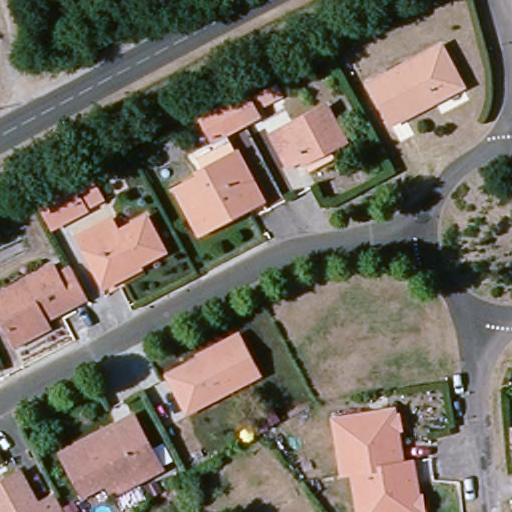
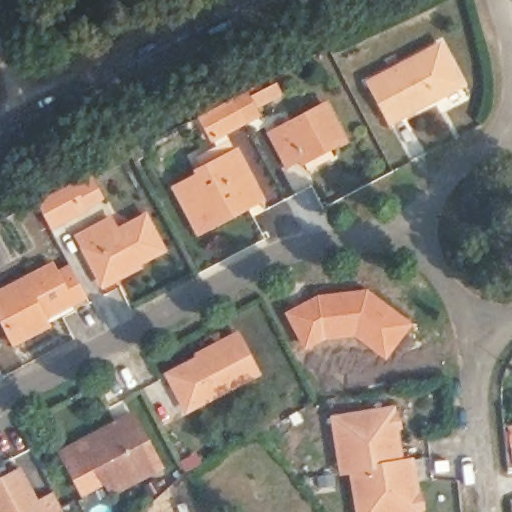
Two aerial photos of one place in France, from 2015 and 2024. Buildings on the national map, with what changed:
unchanged [(456,91),(391,125),(366,85),(433,52),(456,91)]
unchanged [(244,89),(278,72),(289,94),(254,110),(244,89)]
unchanged [(194,120),(225,104),(241,96),(254,120),(238,129),(207,145),(194,120)]
unchanged [(309,174),(303,165),(298,157),(283,166),(265,135),(319,106),(339,144),(329,150),(335,160),(309,174)]
unchanged [(195,241),(171,199),(198,182),(196,177),(190,167),(224,148),(230,159),(257,208),(239,217),(207,235),(195,241)]
unchanged [(71,185),(97,173),(110,202),(83,215),(71,185)]
unchanged [(31,207),(55,195),(66,189),(79,213),(68,219),(44,231),(31,207)]
unchanged [(84,271),(68,240),(84,231),(97,224),(106,237),(137,220),(158,257),(112,281),(94,291),(84,271)]
unchanged [(13,347),(0,322),(0,289),(43,267),(48,276),(66,265),(85,300),(65,310),(36,325),(40,333),(13,347)]
new [(318,295),(366,288),(414,322),(385,361),(353,337),(325,341),(304,351),(284,312),(318,295)]
unchanged [(173,375),(235,343),(244,338),(263,373),(254,378),(192,411),(173,375)]
unchanged [(104,476),(81,490),(60,450),(126,415),(153,468),(136,477),(111,490),(104,476)]
unchanged [(349,476),(339,478),(329,425),(389,415),(399,467),(349,476)]
unchanged [(417,512),(355,512),(349,476),(399,467),(408,465),(417,512)]
unchanged [(35,505),(53,495),(62,512),(0,512),(0,482),(18,473),(35,505)]

